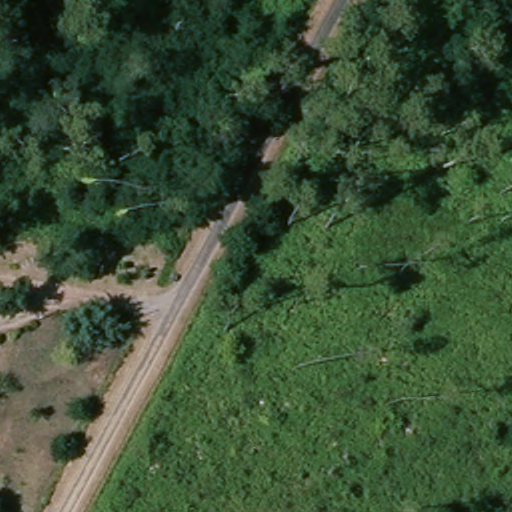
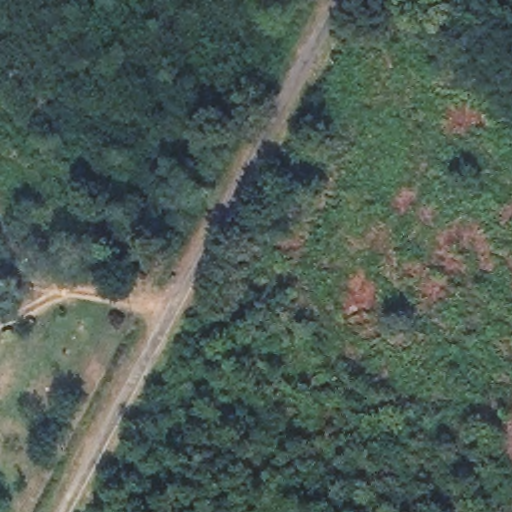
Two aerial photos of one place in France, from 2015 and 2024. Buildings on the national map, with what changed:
[]

